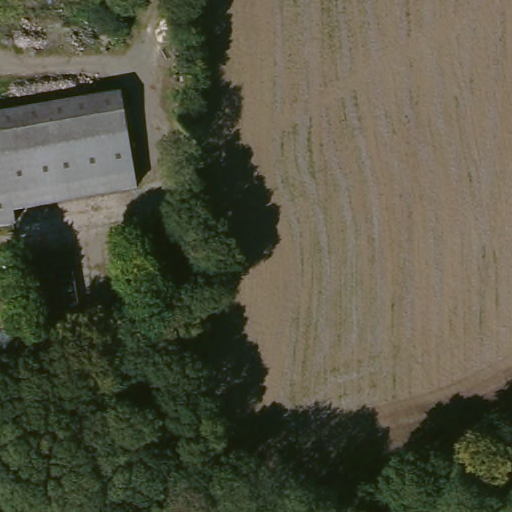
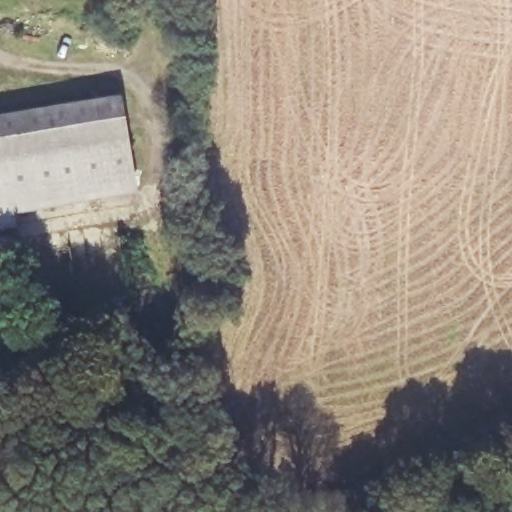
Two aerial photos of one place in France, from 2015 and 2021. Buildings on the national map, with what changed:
unchanged [(119,98),(128,209),(6,222),(0,170),(0,109),(119,98)]
unchanged [(0,222),(0,170),(6,222),(0,222)]

